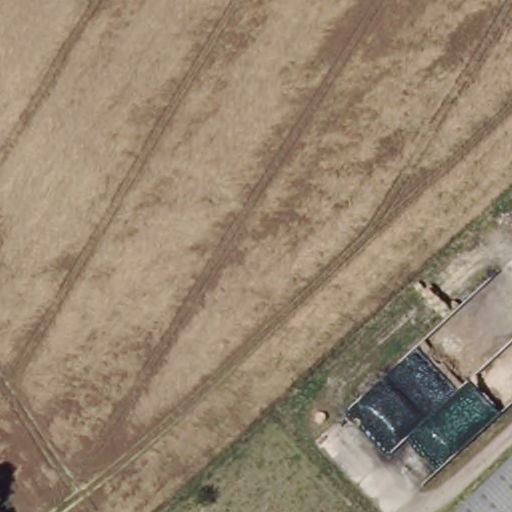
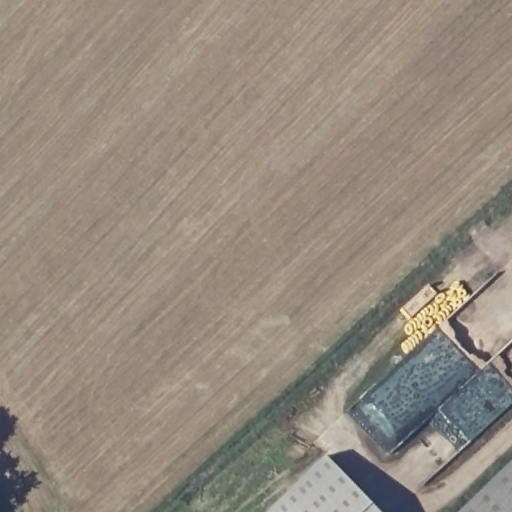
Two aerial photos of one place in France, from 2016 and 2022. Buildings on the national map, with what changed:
new [(381,512),(268,512),(326,455),(381,512)]
unchanged [(512,460),(512,512),(459,512),(512,460)]

